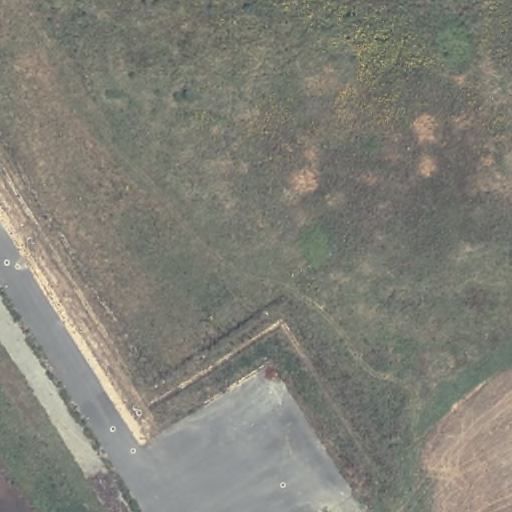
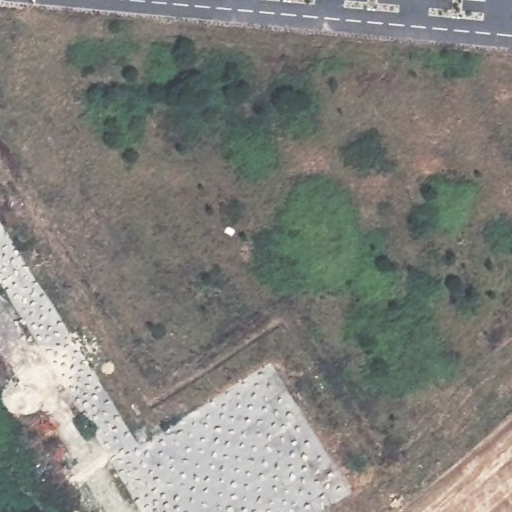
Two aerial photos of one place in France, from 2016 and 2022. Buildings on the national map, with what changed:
[]

